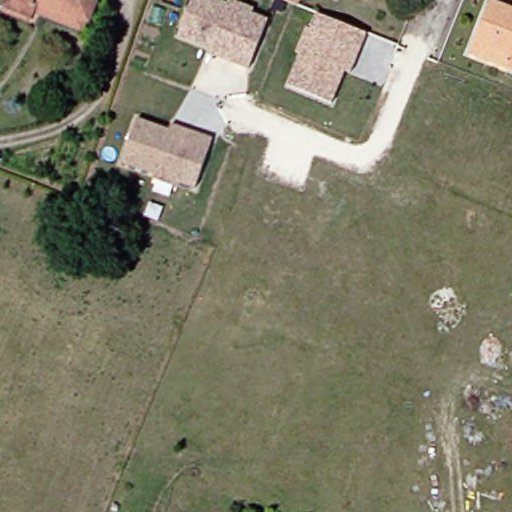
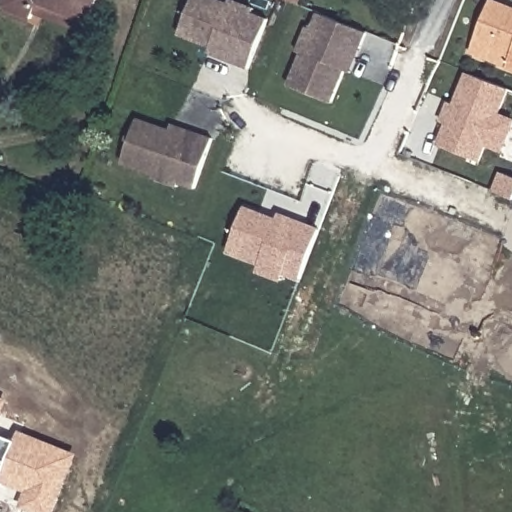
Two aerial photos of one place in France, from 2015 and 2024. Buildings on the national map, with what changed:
unchanged [(36,20),(8,8),(11,0),(101,0),(93,21),(89,30),(39,12),(36,20)]
unchanged [(177,35),(191,0),(215,0),(227,5),(228,0),(253,10),(251,14),(267,20),(247,70),(232,63),(207,54),(210,48),(177,35)]
unchanged [(289,0),(295,0),(294,2),(289,0)]
unchanged [(495,0),(501,0),(512,4),(512,66),(475,51),(480,40),(495,0)]
unchanged [(344,72),(330,105),(287,87),(300,55),(295,53),(306,29),(310,30),(316,15),(366,35),(359,51),(349,75),(344,72)]
new [(441,122),(449,101),(454,104),(467,72),(510,90),(501,113),(512,117),(512,132),(505,153),(487,146),(482,161),(438,145),(446,124),(441,122)]
unchanged [(151,179),(153,175),(120,164),(136,119),(168,130),(170,125),(194,134),(211,140),(193,189),(177,184),(176,187),(151,179)]
new [(227,254),(243,210),(275,222),(277,216),(302,225),(318,231),(299,281),(283,275),(259,266),(227,254)]
new [(10,399),(0,426),(0,395),(10,399)]
new [(28,492),(1,482),(0,482),(0,434),(18,441),(21,430),(80,454),(56,512),(33,512),(22,507),(28,492)]

